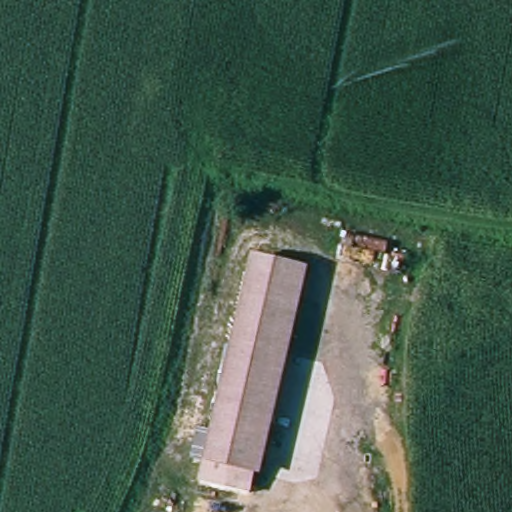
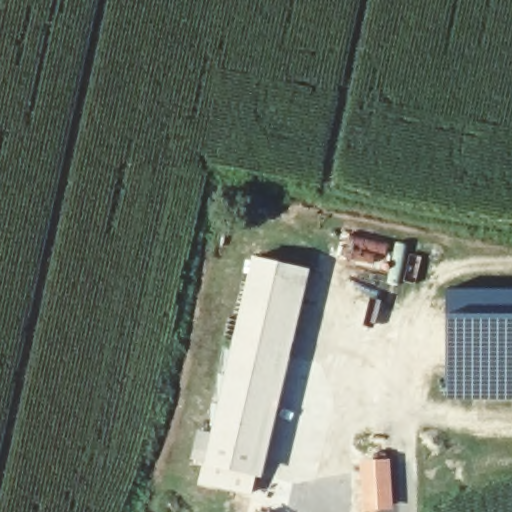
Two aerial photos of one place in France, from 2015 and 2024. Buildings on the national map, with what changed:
unchanged [(247,243),(296,253),(256,459),(207,449),(247,243)]
new [(445,287),(512,287),(512,399),(446,399),(445,287)]
unchanged [(256,459),(252,479),(203,469),(207,449),(256,459)]
new [(395,511),(370,512),(362,512),(360,461),(392,460),(395,511)]

